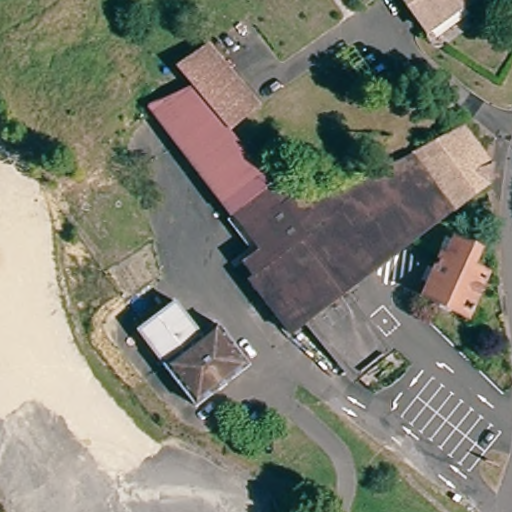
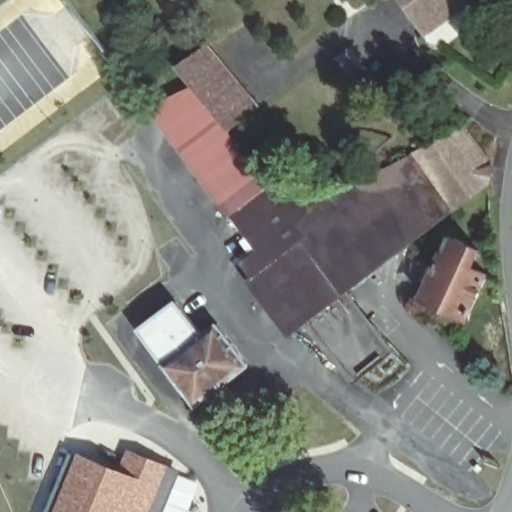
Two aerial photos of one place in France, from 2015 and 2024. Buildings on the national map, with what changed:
unchanged [(462,0),(426,26),(407,0),(462,0)]
unchanged [(197,86),(181,65),(213,42),(262,105),(233,129),(197,86)]
unchanged [(416,240),(346,294),(308,322),(295,332),(253,278),(256,275),(233,245),(250,231),(154,107),(177,96),(197,86),(233,129),(279,186),(312,194),(348,185),(412,152),(455,210),(416,240)]
unchanged [(491,183),(455,210),(412,152),(465,127),(494,167),(491,183)]
unchanged [(444,254),(445,252),(452,255),(460,236),(483,245),(476,263),(492,271),(474,313),(427,293),(444,254)]
unchanged [(346,294),(382,340),(345,370),(308,322),(346,294)]
unchanged [(247,363),(193,402),(138,325),(176,298),(201,332),(217,321),(247,363)]
new [(126,449),(182,471),(166,512),(132,512),(131,511),(131,512),(53,512),(78,452),(119,470),(126,449)]

